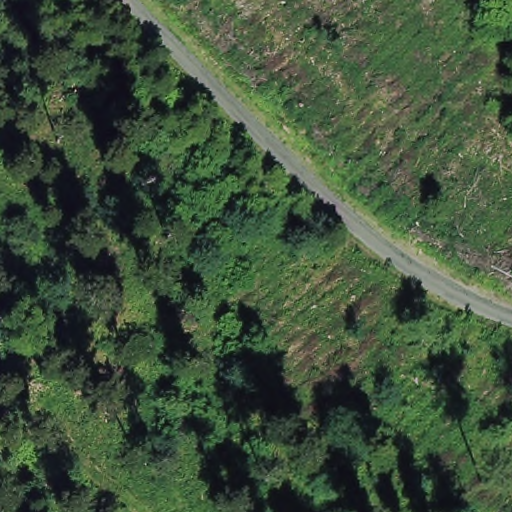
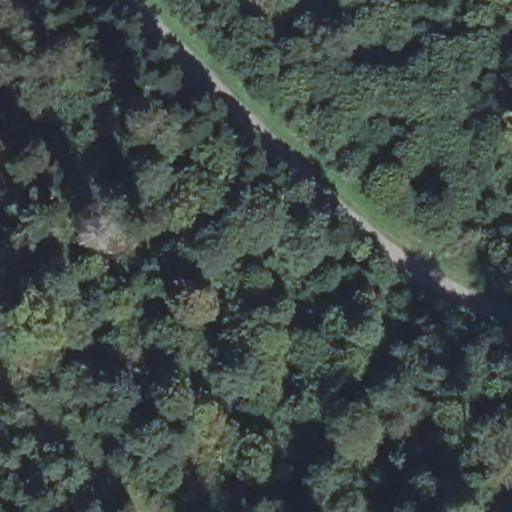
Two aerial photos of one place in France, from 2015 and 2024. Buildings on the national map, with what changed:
[]

